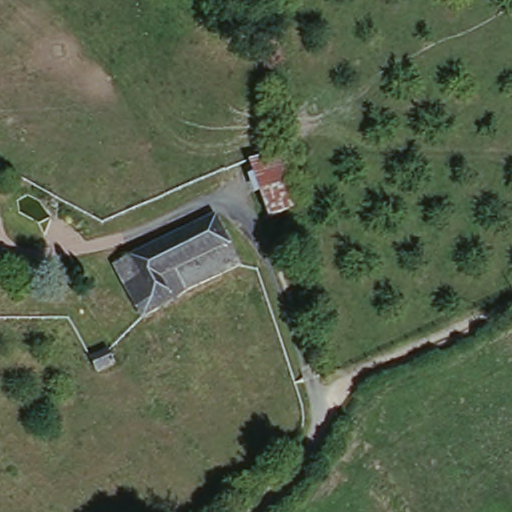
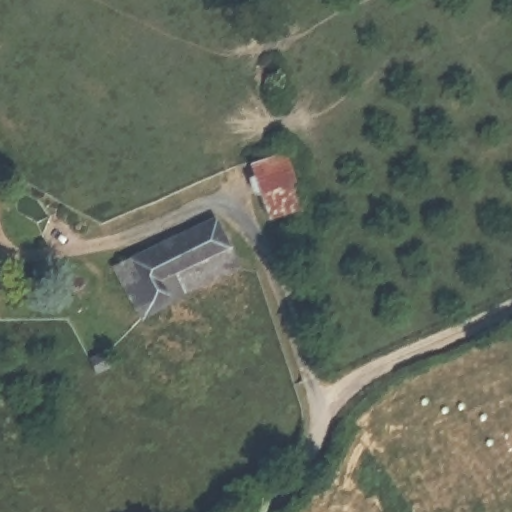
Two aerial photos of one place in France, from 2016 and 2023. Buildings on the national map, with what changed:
unchanged [(291,183),(300,209),(270,219),(248,165),(286,151),(296,180),(291,183)]
unchanged [(215,218),(241,264),(148,310),(121,262),(215,218)]
unchanged [(98,385),(105,400),(90,406),(85,390),(98,385)]

